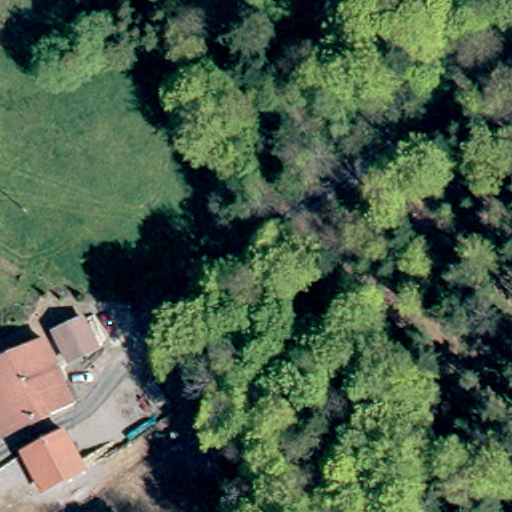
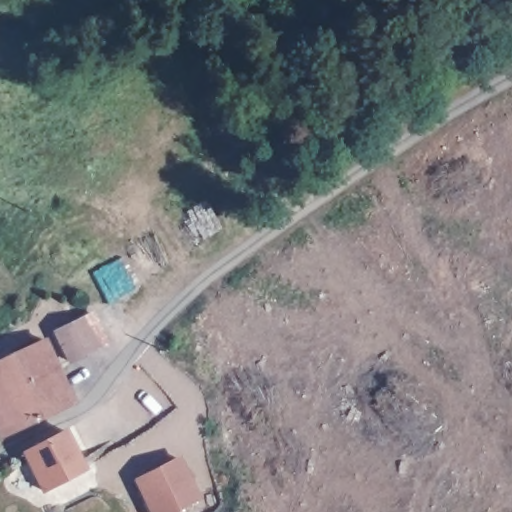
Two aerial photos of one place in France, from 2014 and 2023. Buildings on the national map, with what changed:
unchanged [(87,341),(64,351),(54,323),(75,315),(87,341)]
unchanged [(0,428),(0,350),(44,330),(70,392),(67,396),(0,428)]
unchanged [(24,443),(64,421),(79,448),(84,457),(80,459),(42,479),(24,443)]
new [(148,512),(134,479),(180,455),(201,499),(175,512),(148,512)]

